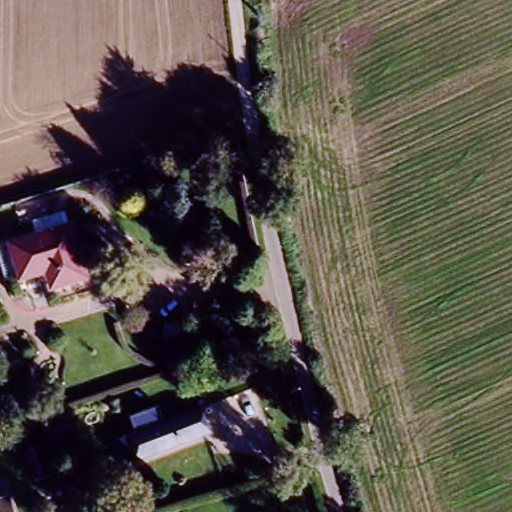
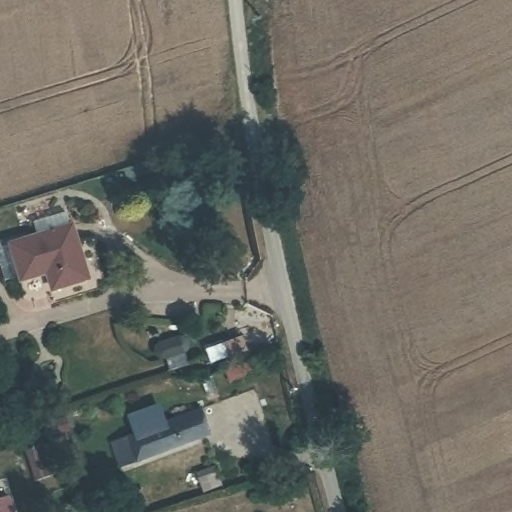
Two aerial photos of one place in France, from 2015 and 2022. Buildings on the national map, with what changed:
unchanged [(67,219),(83,274),(46,285),(40,265),(15,272),(4,237),(67,219)]
unchanged [(208,410),(216,432),(133,458),(126,435),(208,410)]
unchanged [(298,493),(304,512),(286,512),(282,497),(298,493)]
unchanged [(14,512),(0,512),(0,496),(6,495),(14,512)]

